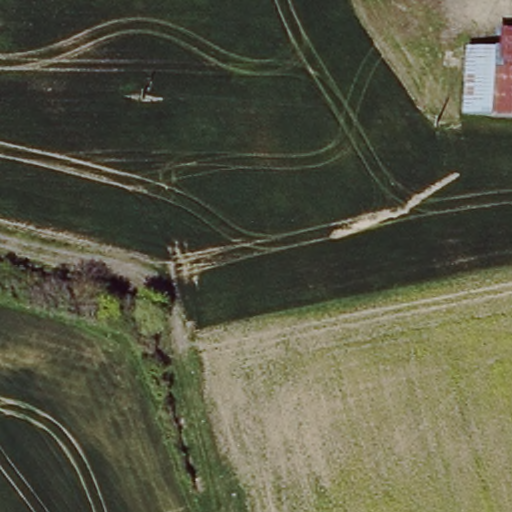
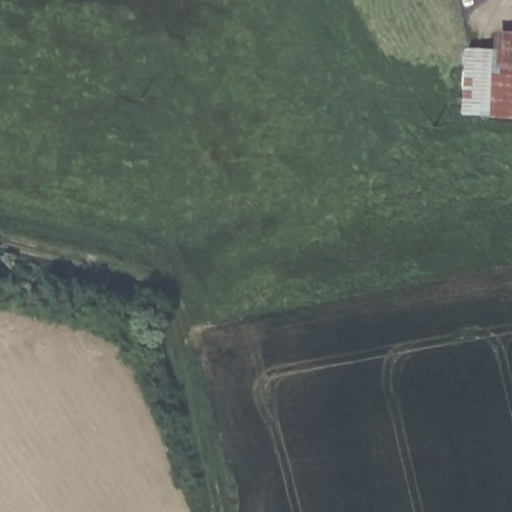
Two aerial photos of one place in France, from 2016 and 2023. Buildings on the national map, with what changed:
unchanged [(512,120),(490,119),(495,49),(496,30),(512,31),(512,120)]
unchanged [(495,49),(490,119),(461,116),(465,47),(495,49)]

